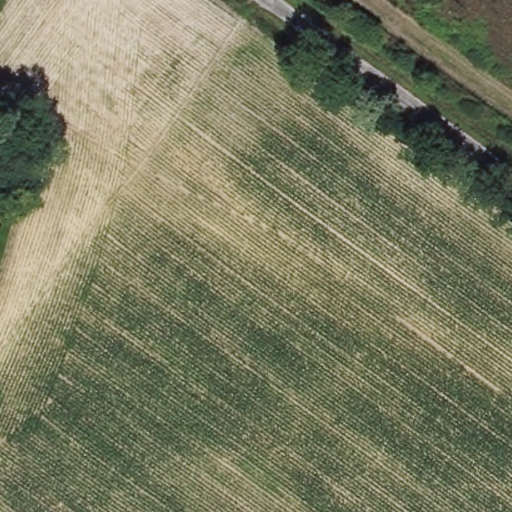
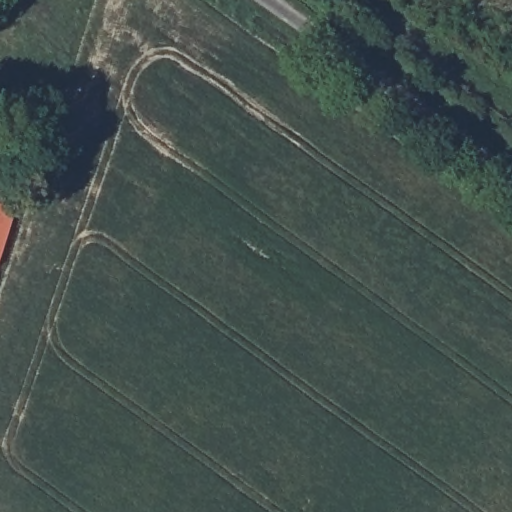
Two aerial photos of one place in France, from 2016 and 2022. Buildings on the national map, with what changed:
new [(14,211),(0,256),(0,206),(14,211)]

